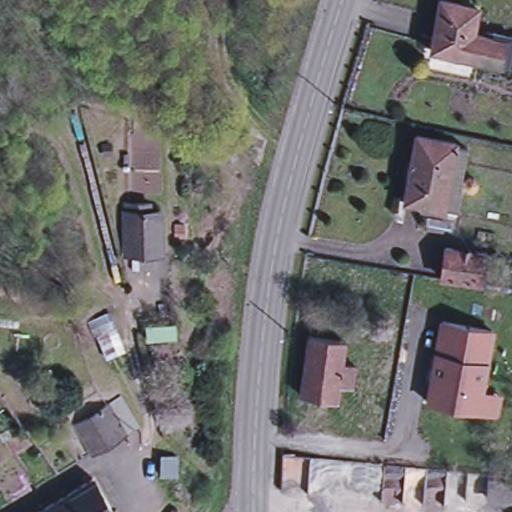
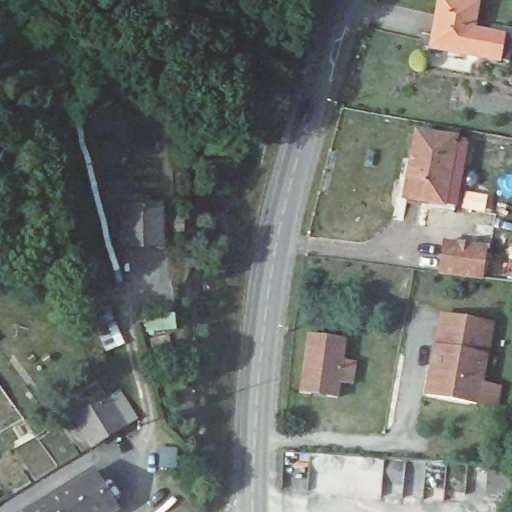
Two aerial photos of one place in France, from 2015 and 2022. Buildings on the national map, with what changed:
unchanged [(427,51),(436,0),(444,0),(474,5),(469,31),(464,58),(427,51)]
unchanged [(488,35),(489,28),(507,32),(502,64),(464,58),(469,31),(488,35)]
unchanged [(417,139),(457,146),(446,211),(406,205),(417,139)]
unchanged [(133,197),(147,197),(148,207),(160,206),(163,252),(122,254),(119,198),(133,197)]
unchanged [(443,241),(482,246),(478,276),(438,270),(443,241)]
unchanged [(497,408),(478,406),(428,398),(440,317),(490,325),(481,385),(500,388),(497,408)]
unchanged [(346,337),(339,394),(301,390),(308,332),(346,337)]
unchanged [(120,419),(112,425),(88,402),(104,392),(120,419)]
unchanged [(103,459),(90,439),(73,412),(88,402),(106,429),(118,449),(103,459)]
unchanged [(109,505),(99,512),(79,512),(61,482),(86,466),(109,505)]
unchanged [(79,512),(47,512),(38,496),(61,482),(79,512)]
unchanged [(47,512),(17,512),(16,510),(38,496),(47,512)]
unchanged [(17,512),(13,512),(16,510),(17,512)]

